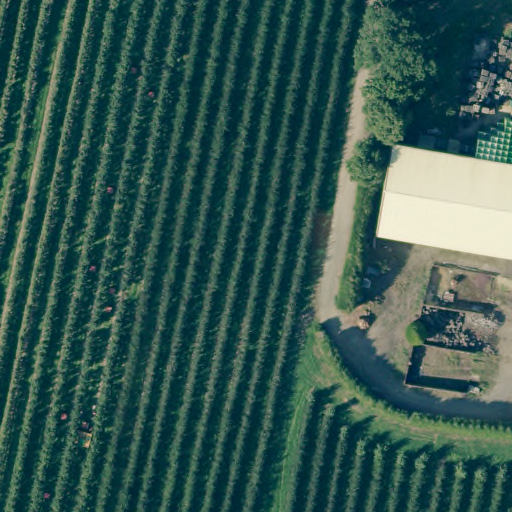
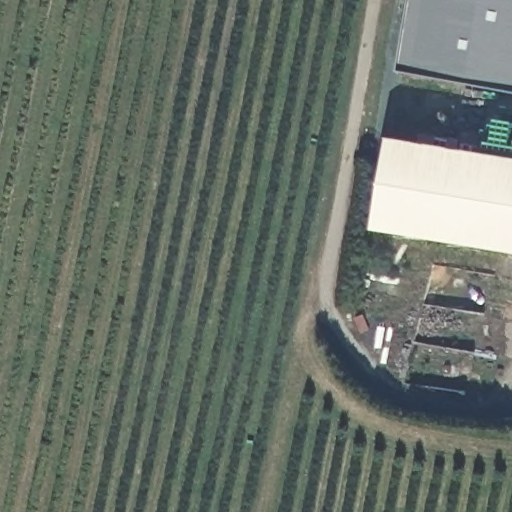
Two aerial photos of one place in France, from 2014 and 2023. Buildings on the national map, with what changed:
new [(403,74),(416,0),(512,0),(512,94),(403,74)]
unchanged [(512,158),(512,250),(383,230),(396,139),(512,158)]

